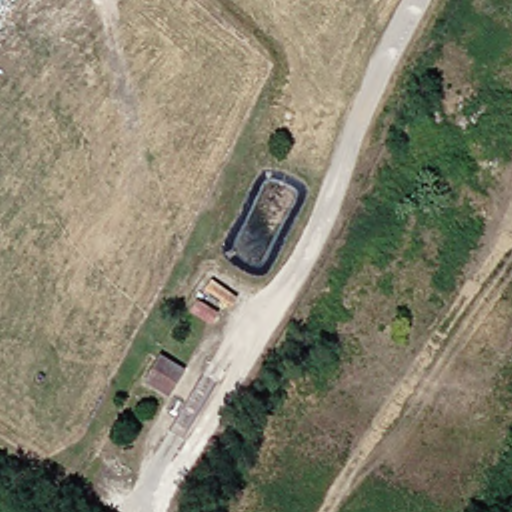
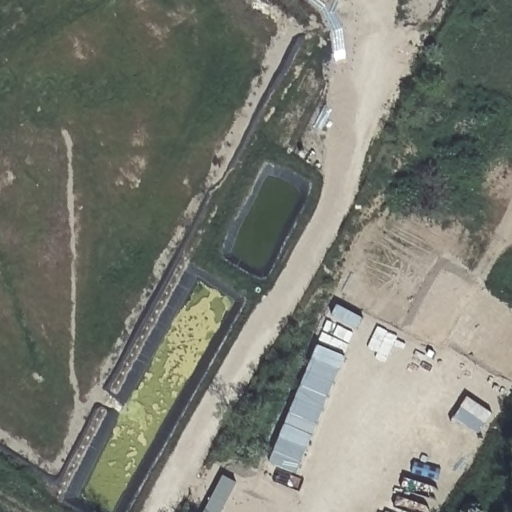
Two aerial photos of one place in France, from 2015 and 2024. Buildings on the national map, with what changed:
new [(297,473),(270,461),(317,343),(346,356),(297,473)]
demolished [(187,368),(168,394),(149,380),(165,354),(187,368)]

